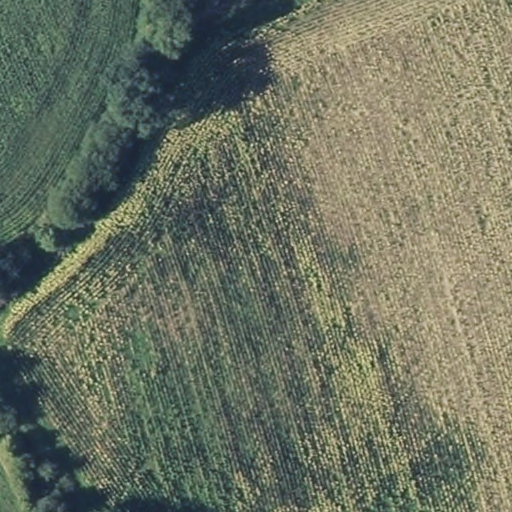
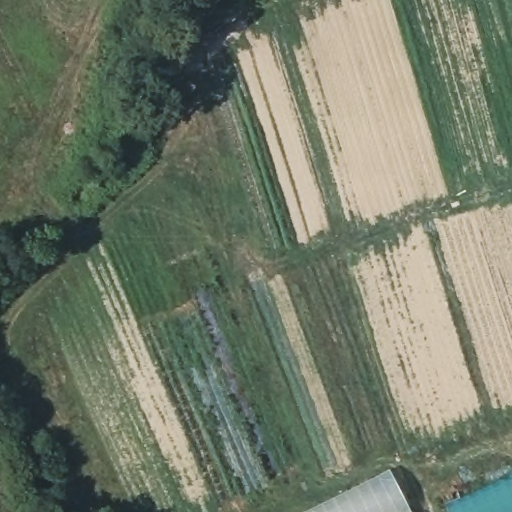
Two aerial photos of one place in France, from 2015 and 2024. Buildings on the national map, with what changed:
new [(412,512),(308,512),(391,471),(412,512)]
new [(449,504),(512,476),(512,512),(452,512),(449,504)]

